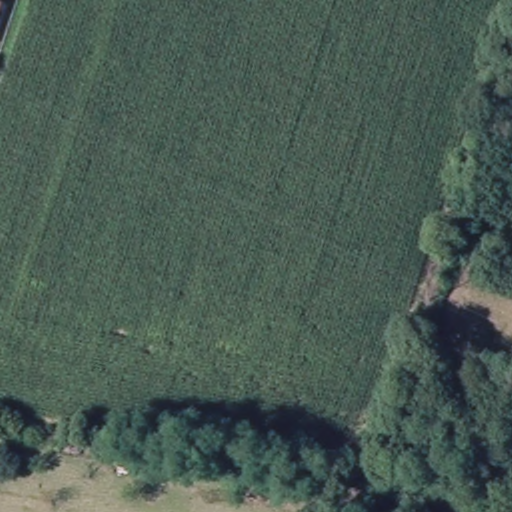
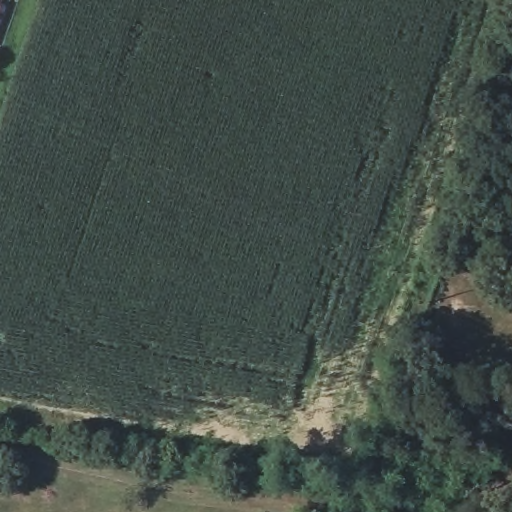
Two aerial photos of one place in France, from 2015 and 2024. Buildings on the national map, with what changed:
unchanged [(1,11),(0,15),(0,11),(1,11)]

